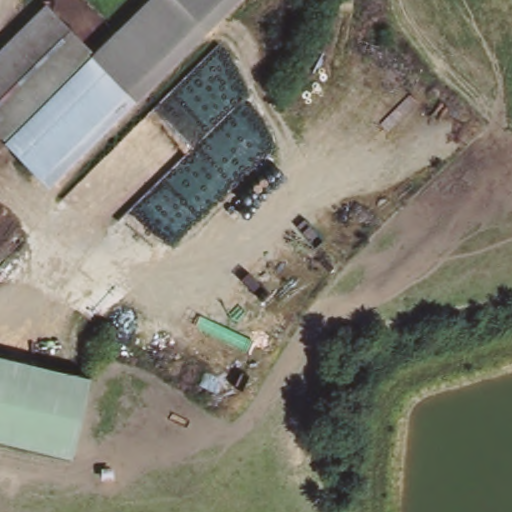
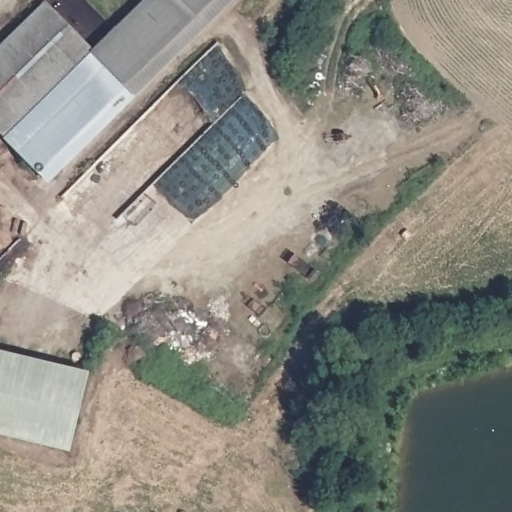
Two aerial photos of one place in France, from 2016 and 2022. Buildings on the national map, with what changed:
unchanged [(136,96),(100,60),(159,0),(230,0),(136,96)]
unchanged [(0,137),(0,66),(53,12),(100,60),(11,149),(0,137)]
unchanged [(136,96),(48,186),(11,149),(100,60),(136,96)]
unchanged [(87,370),(73,450),(0,437),(0,354),(87,370)]

